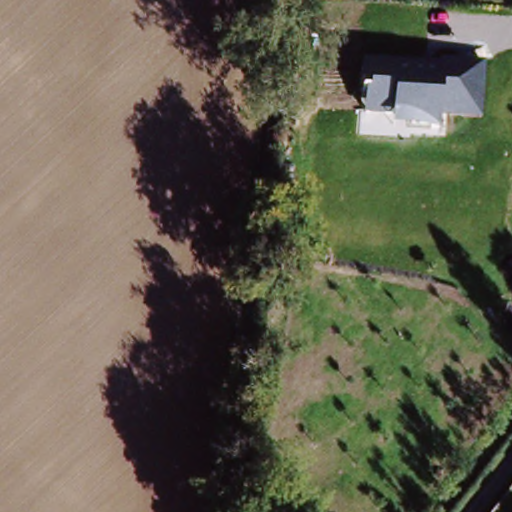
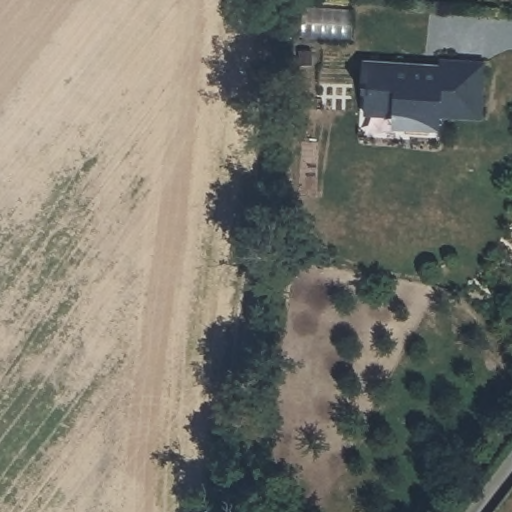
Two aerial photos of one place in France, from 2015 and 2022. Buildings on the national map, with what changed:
unchanged [(367,59),(486,63),(484,119),(439,119),(438,130),(391,128),(392,116),(363,114),(367,59)]

